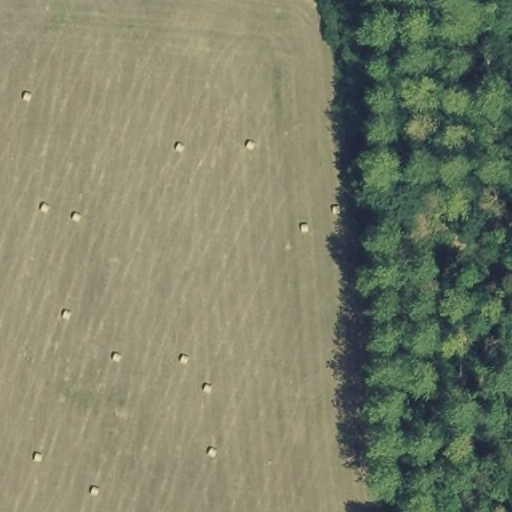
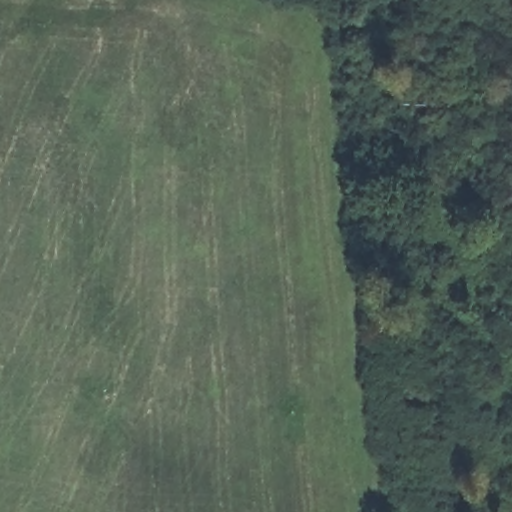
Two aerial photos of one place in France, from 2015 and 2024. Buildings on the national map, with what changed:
unchanged [(94,375),(80,374),(81,353),(96,357),(94,375)]

